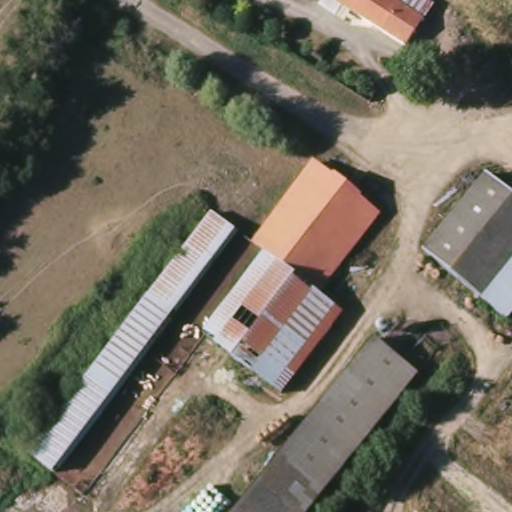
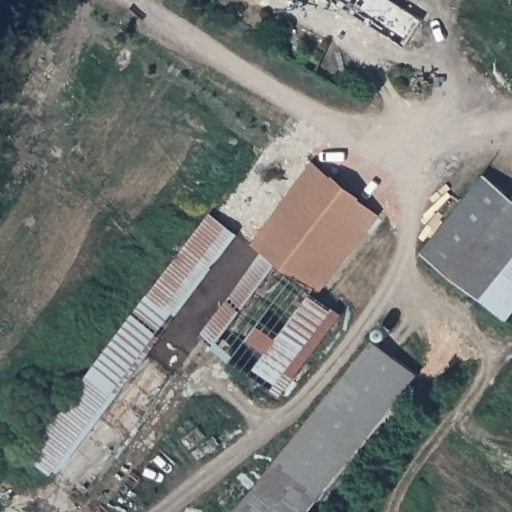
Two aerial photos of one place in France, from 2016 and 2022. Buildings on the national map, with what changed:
unchanged [(406,49),(345,12),(339,19),(320,10),(327,0),(326,0),(390,0),(426,21),(406,49)]
unchanged [(257,212),(275,223),(320,170),(381,221),(322,293),(268,253),(250,240),(241,234),(250,224),(257,212)]
unchanged [(473,297),(420,251),(482,175),(512,200),(512,250),(473,297)]
unchanged [(51,470),(28,451),(211,212),(239,230),(51,470)]
unchanged [(473,297),(512,250),(512,305),(500,318),(473,297)]
unchanged [(203,334),(268,253),(322,293),(331,300),(345,312),(280,394),(263,381),(203,334)]
unchanged [(309,512),(236,512),(277,457),(367,341),(412,376),(320,497),(309,512)]

